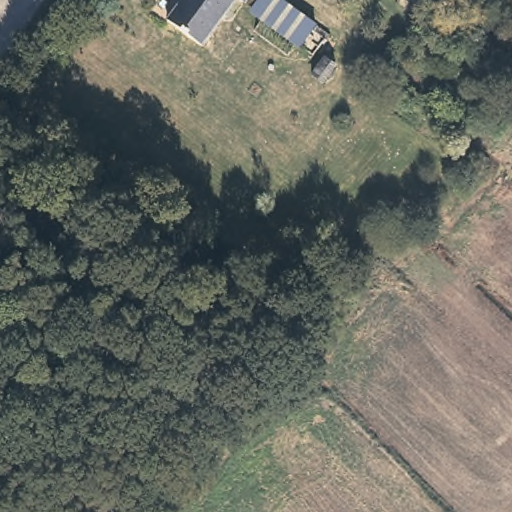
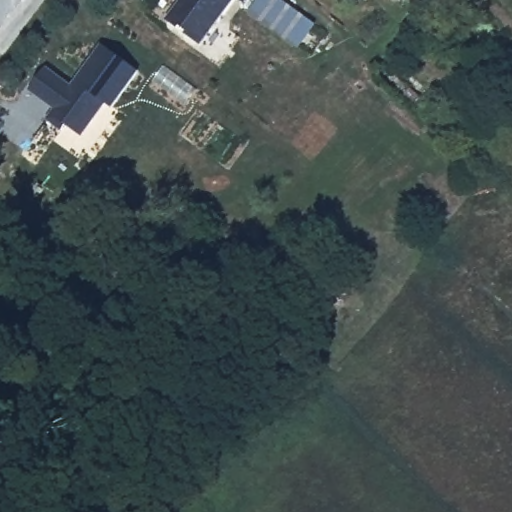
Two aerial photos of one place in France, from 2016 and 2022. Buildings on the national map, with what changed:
unchanged [(204,44),(170,20),(185,0),(237,0),(204,44)]
unchanged [(247,3),(241,0),(250,0),(247,3)]
unchanged [(317,24),(300,49),(249,12),(257,0),(283,0),(317,24)]
new [(48,67),(77,88),(82,82),(78,79),(104,44),(140,71),(114,107),(108,103),(84,136),(68,125),(65,130),(49,119),(57,108),(32,89),(48,67)]

